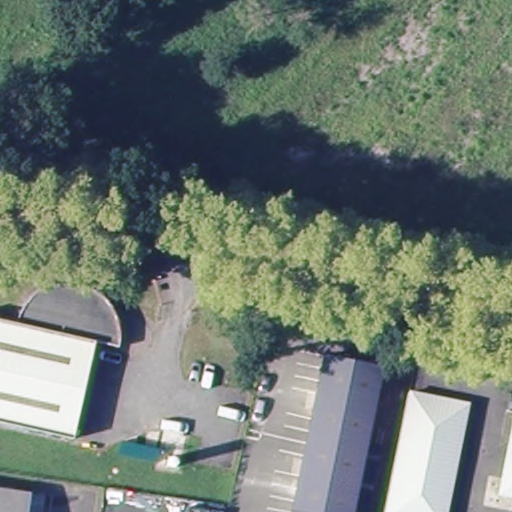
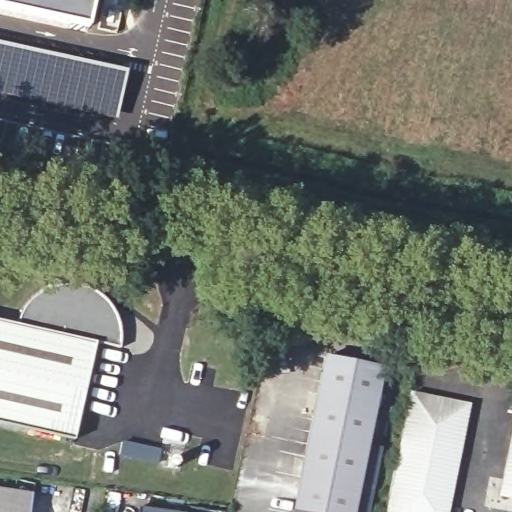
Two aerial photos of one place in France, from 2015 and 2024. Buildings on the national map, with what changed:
new [(0,4),(0,0),(94,0),(88,24),(0,4)]
new [(128,70),(117,120),(53,105),(0,97),(0,41),(128,70)]
unchanged [(18,325),(19,319),(23,312),(29,303),(35,296),(44,290),(55,285),(67,282),(77,282),(86,285),(93,288),(100,292),(107,297),(113,305),(118,315),(122,326),(123,338),(121,348),(97,343),(75,440),(0,423),(0,321),(18,325)]
unchanged [(369,445),(393,450),(390,461),(379,512),(291,512),(325,357),(385,370),(369,445)]
unchanged [(474,405),(451,512),(389,512),(416,392),(474,405)]
new [(121,439),(162,447),(158,465),(117,456),(121,439)]
unchanged [(512,485),(512,492),(511,491),(512,485)]
unchanged [(36,495),(33,512),(0,512),(0,490),(36,495)]
new [(140,507),(175,512),(139,512),(140,507)]

